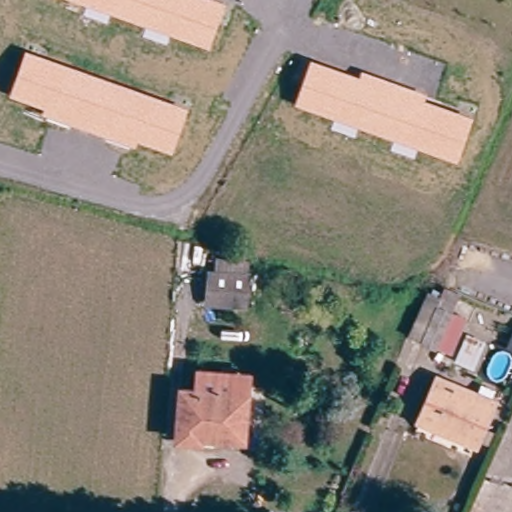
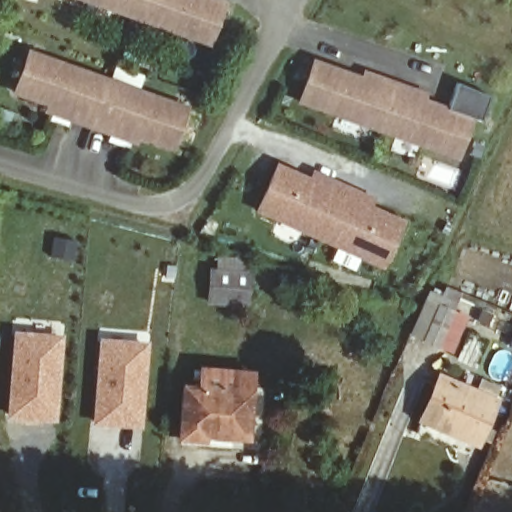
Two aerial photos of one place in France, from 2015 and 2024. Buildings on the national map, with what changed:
unchanged [(227,2),(211,49),(73,0),(220,0),(227,2)]
unchanged [(174,153),(139,141),(137,146),(43,114),(45,107),(11,96),(27,49),(190,108),(174,153)]
unchanged [(311,58),(360,76),(363,70),(429,93),(426,100),(475,117),(458,162),(296,105),(311,58)]
new [(317,185),(320,177),(332,182),(349,189),(327,242),(264,215),(283,170),(317,185)]
new [(366,196),(377,201),(374,209),(408,223),(389,268),(327,242),(349,189),(366,196)]
unchanged [(239,307),(212,306),(213,265),(241,266),(239,307)]
unchanged [(453,305),(436,345),(423,340),(441,300),(453,305)]
new [(64,335),(58,423),(6,420),(12,331),(64,335)]
new [(149,342),(143,430),(92,427),(98,338),(149,342)]
unchanged [(202,439),(202,443),(182,441),(184,393),(206,393),(206,372),(226,373),(250,374),(250,382),(249,395),(247,440),(202,439)]
unchanged [(438,380),(493,405),(474,448),(418,425),(438,380)]

